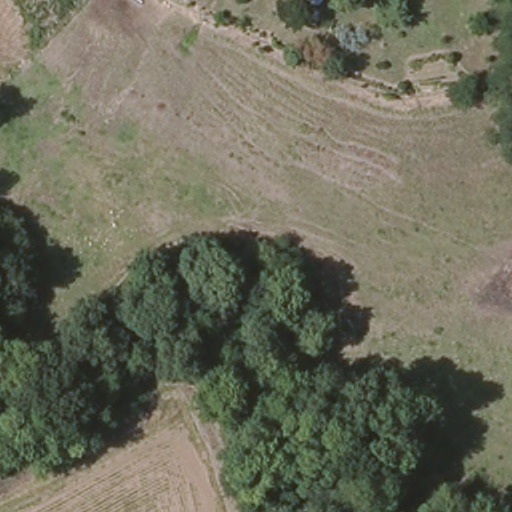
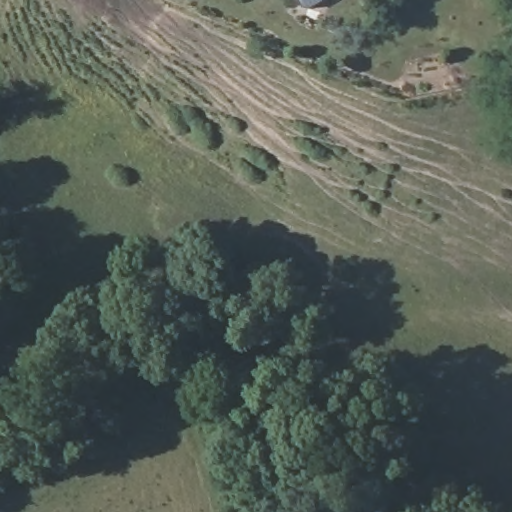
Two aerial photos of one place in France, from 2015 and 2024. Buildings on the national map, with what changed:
unchanged [(484,4),(483,0),(495,0),(484,4)]

